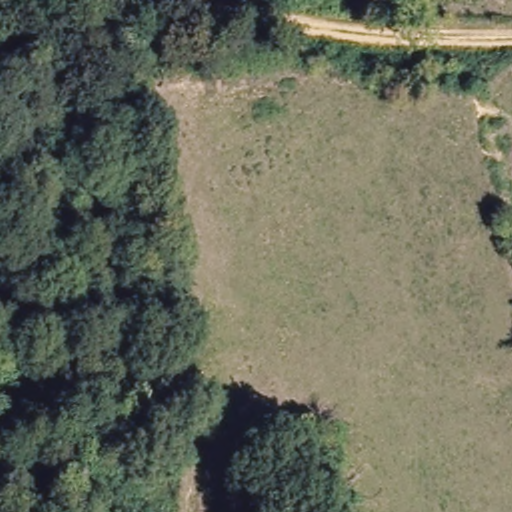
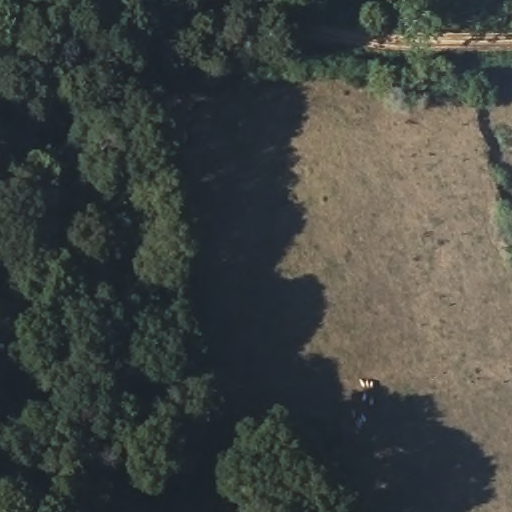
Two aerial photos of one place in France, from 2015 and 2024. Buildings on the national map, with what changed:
[]

